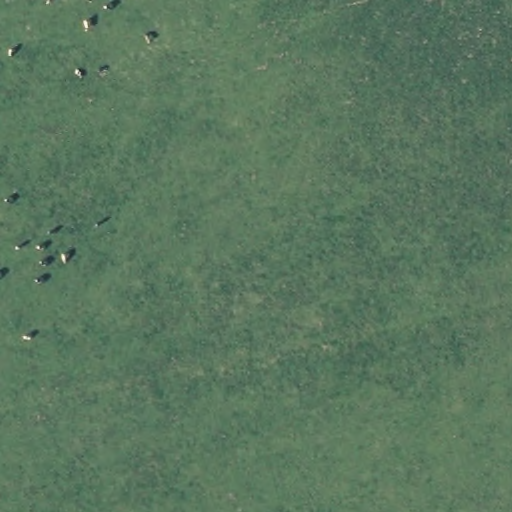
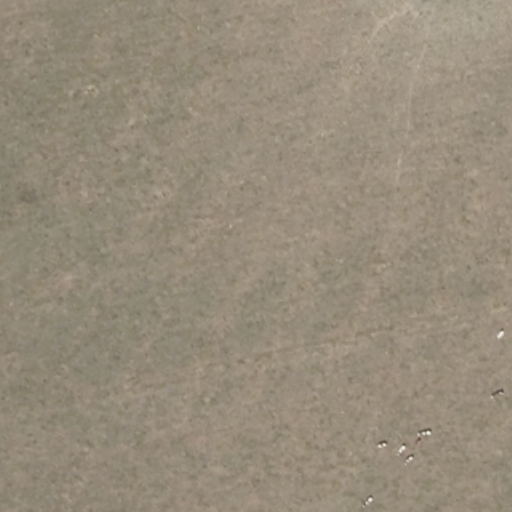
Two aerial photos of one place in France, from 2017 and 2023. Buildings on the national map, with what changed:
[]

